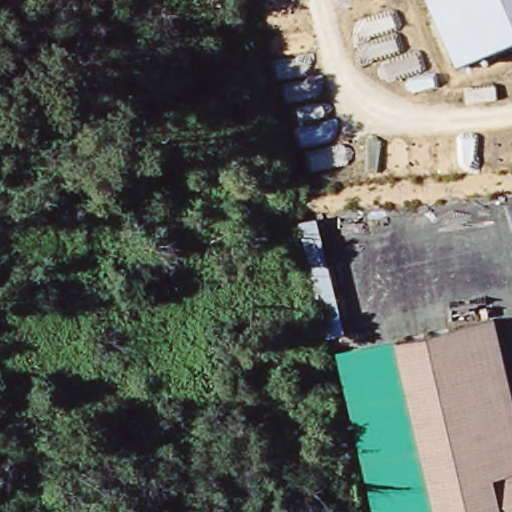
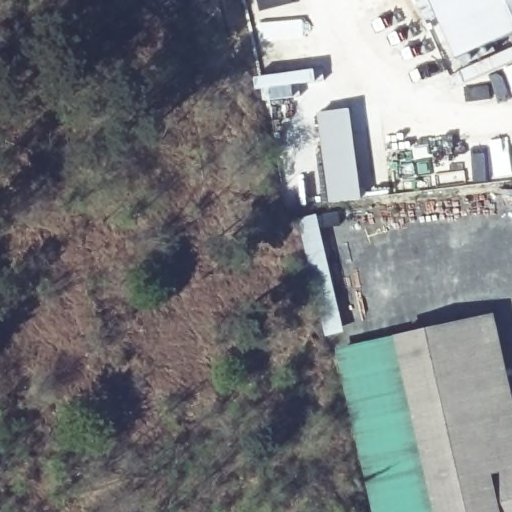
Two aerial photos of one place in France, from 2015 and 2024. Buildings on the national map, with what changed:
unchanged [(432,0),(512,0),(512,33),(456,57),(432,0)]
new [(358,199),(327,203),(316,112),(347,109),(358,199)]
unchanged [(372,512),(336,350),(497,311),(512,379),(512,512),(372,512)]

